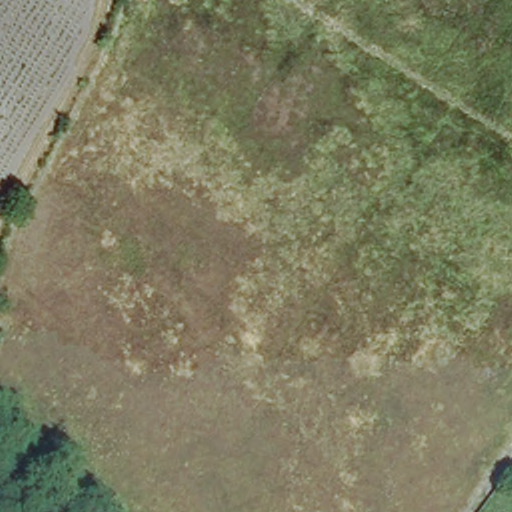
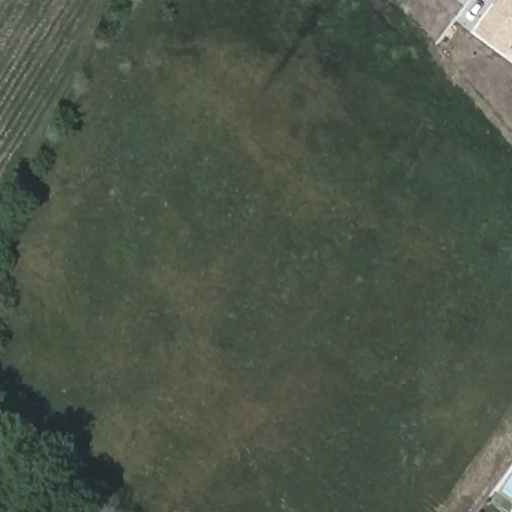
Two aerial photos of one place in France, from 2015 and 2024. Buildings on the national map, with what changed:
new [(512,0),(512,48),(507,53),(477,31),(501,0),(512,0)]

